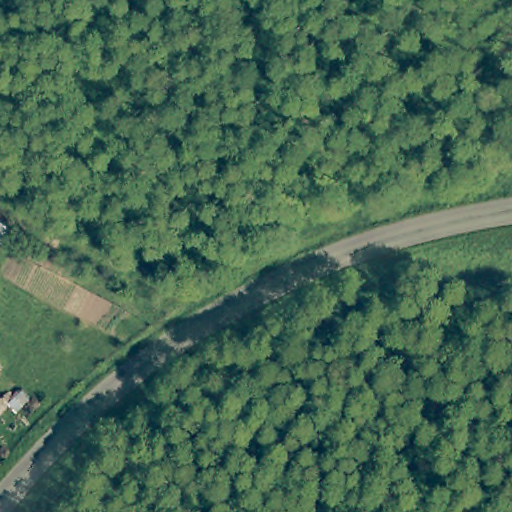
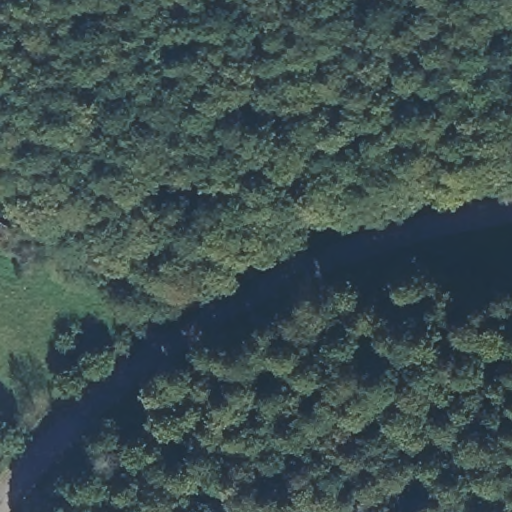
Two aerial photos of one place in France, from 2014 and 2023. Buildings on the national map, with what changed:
unchanged [(6,244),(0,241),(0,218),(16,227),(6,244)]
unchanged [(1,462),(0,464),(0,461),(1,462)]

